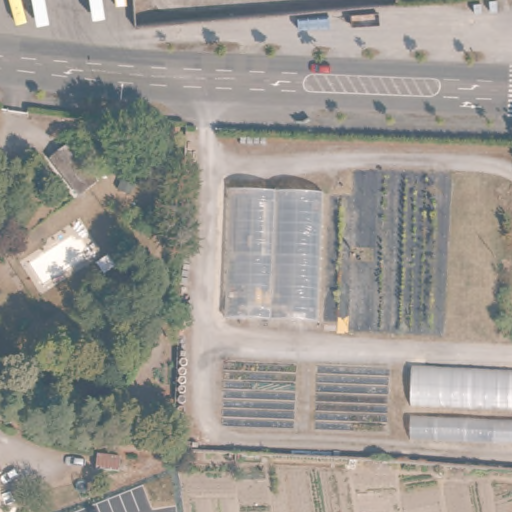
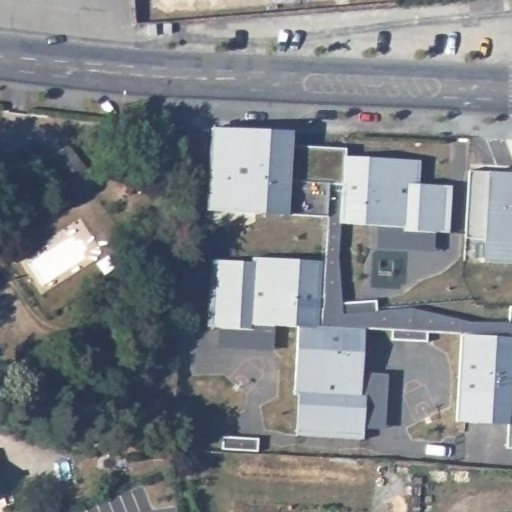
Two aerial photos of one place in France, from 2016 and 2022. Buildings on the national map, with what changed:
new [(447,233),(401,230),(401,227),(338,223),(341,183),(326,183),(325,215),(287,214),(205,209),(209,126),(291,128),(290,146),(345,147),(344,155),(419,158),(417,183),(450,184),(447,233)]
unchanged [(93,176),(77,190),(48,156),(65,141),(93,176)]
new [(481,261),(483,238),(464,236),(468,169),(487,171),(512,172),(512,263),(481,261)]
demolished [(227,186),(325,190),(319,324),(218,317),(227,186)]
new [(361,371),(386,372),(383,428),(362,426),(362,438),(294,434),(298,395),(292,394),(296,325),(275,324),(273,352),(216,347),(217,326),(206,325),(210,257),(250,260),(251,256),(321,259),(315,326),(363,329),(361,371)]
new [(512,335),(512,447),(507,446),(507,424),(454,421),(461,333),(512,335)]
demolished [(512,373),(512,449),(404,439),(410,372),(512,373)]
unchanged [(0,476),(0,464),(3,474),(0,476)]

